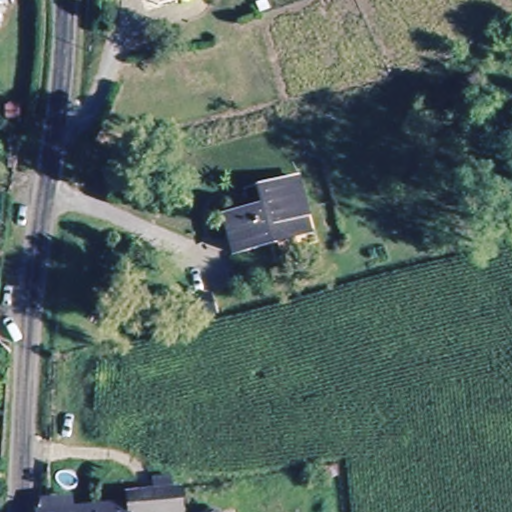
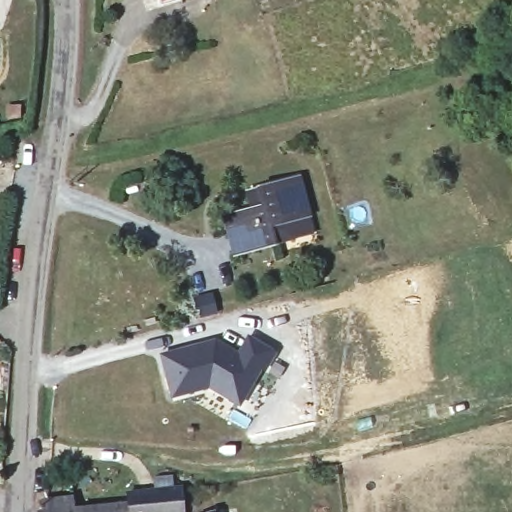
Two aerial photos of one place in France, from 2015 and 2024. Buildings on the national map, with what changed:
unchanged [(268,218),(263,197),(300,189),(310,227),(272,235),(276,255),(239,264),(231,228),(268,218)]
new [(214,338),(237,351),(247,333),(276,349),(265,371),(260,368),(239,405),(208,388),(170,397),(160,354),(214,338)]
unchanged [(142,496),(192,491),(195,512),(70,512),(143,504),(142,496)]
unchanged [(221,512),(198,512),(197,509),(220,504),(221,512)]

